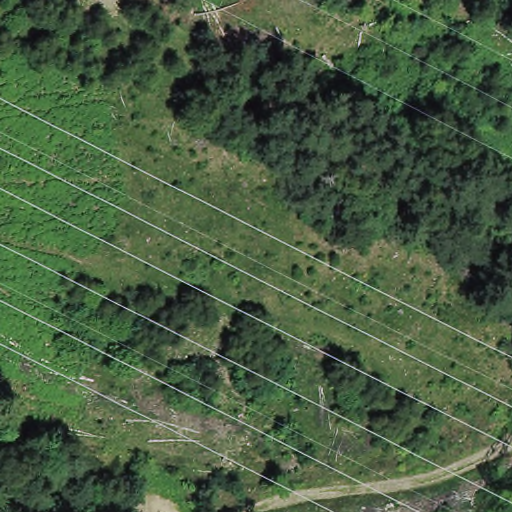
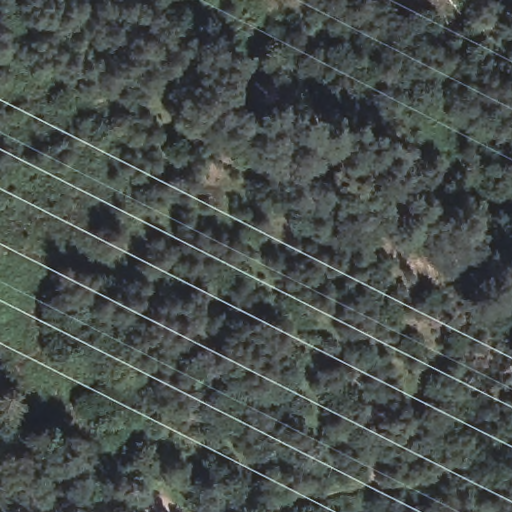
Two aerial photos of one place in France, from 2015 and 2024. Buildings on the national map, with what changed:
[]

